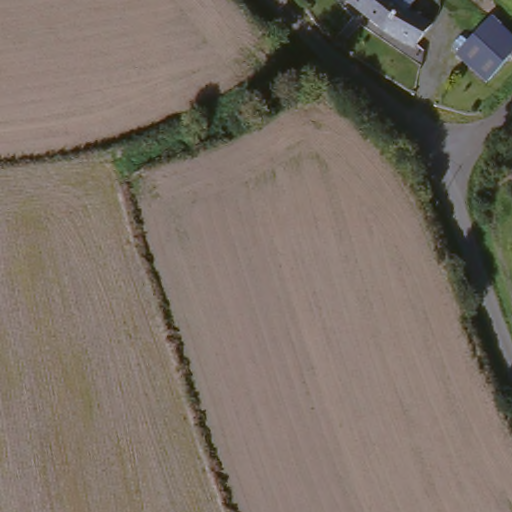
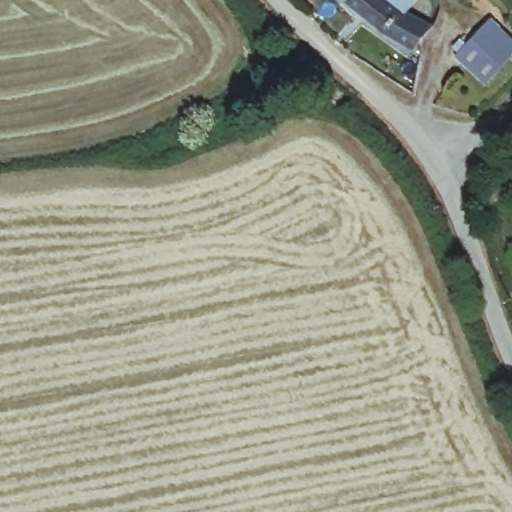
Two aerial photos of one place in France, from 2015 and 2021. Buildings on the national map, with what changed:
unchanged [(430,25),(410,49),(357,0),(401,0),(429,24),(430,25)]
unchanged [(401,0),(425,0),(439,14),(430,25),(429,24),(401,0)]
unchanged [(498,14),(512,29),(512,58),(491,79),(460,52),(498,14)]

